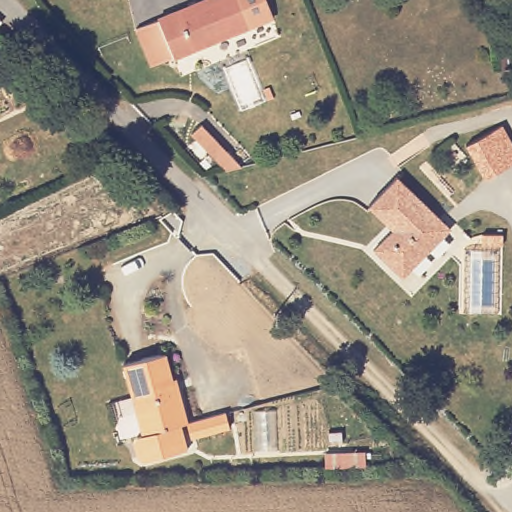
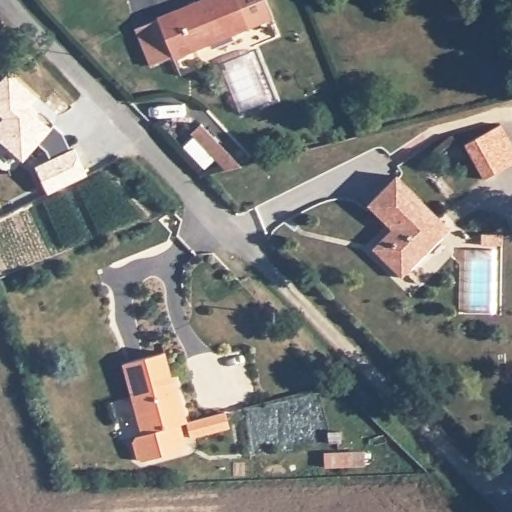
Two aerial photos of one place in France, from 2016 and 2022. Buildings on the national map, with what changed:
unchanged [(171,57),(171,56),(149,65),(134,27),(156,19),(156,18),(202,0),(264,0),(271,18),(171,57)]
new [(47,151),(40,145),(24,163),(0,141),(0,123),(4,119),(0,116),(0,81),(9,71),(38,98),(33,105),(40,111),(36,115),(50,127),(54,124),(64,134),(71,150),(75,148),(89,177),(47,196),(34,167),(51,159),(47,151)]
unchanged [(504,125),(512,141),(512,166),(484,179),(463,142),(504,125)]
unchanged [(220,175),(198,134),(212,127),(235,171),(220,175)]
unchanged [(397,170),(450,223),(404,270),(374,241),(391,224),(367,200),(397,170)]
unchanged [(163,352),(175,387),(179,386),(192,420),(185,421),(194,446),(151,461),(146,459),(145,458),(139,443),(142,437),(149,435),(124,366),(163,352)]

